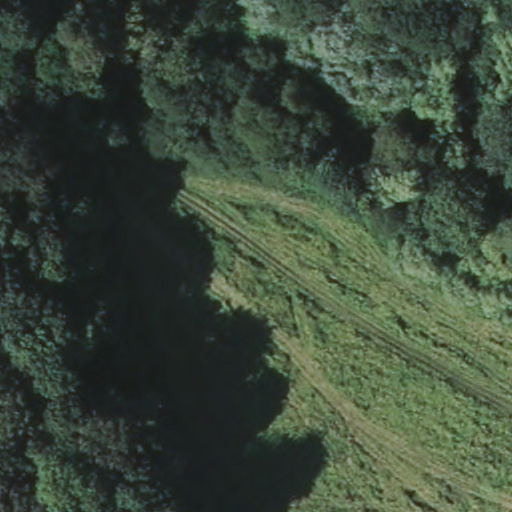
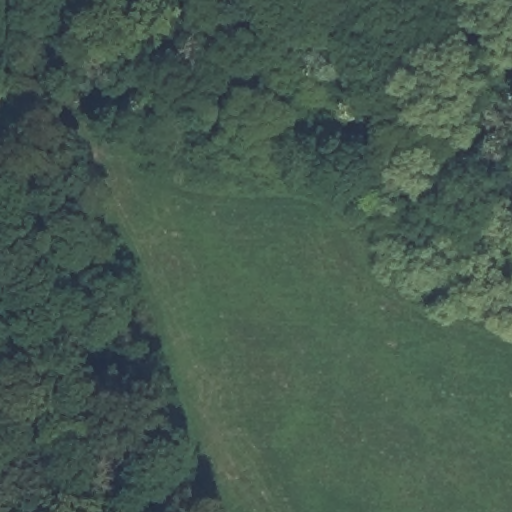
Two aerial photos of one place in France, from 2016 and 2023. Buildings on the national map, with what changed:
[]

